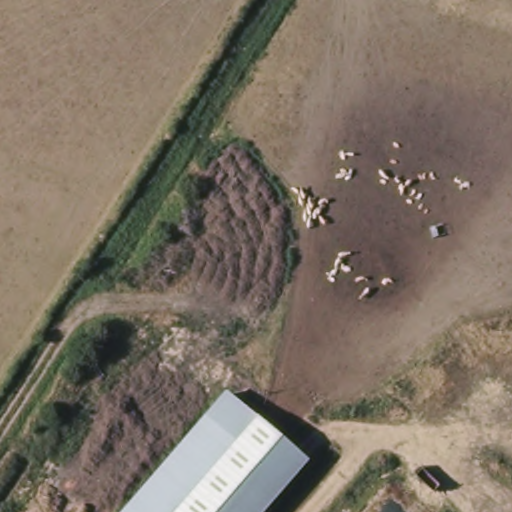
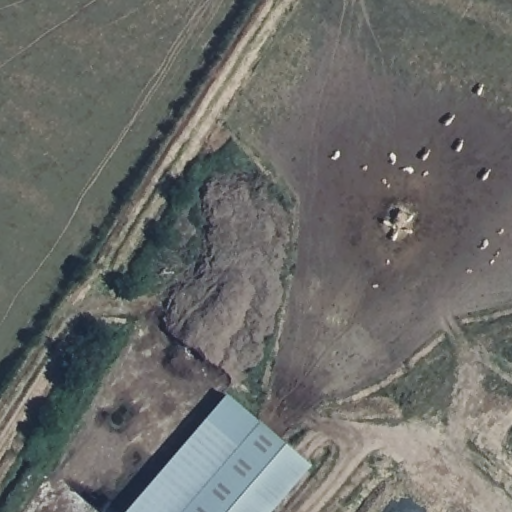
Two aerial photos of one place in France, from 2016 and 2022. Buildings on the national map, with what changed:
unchanged [(222,388),(304,458),(257,512),(117,512),(222,388)]

